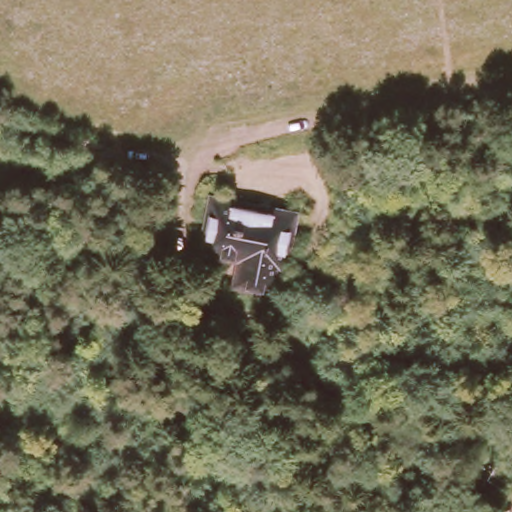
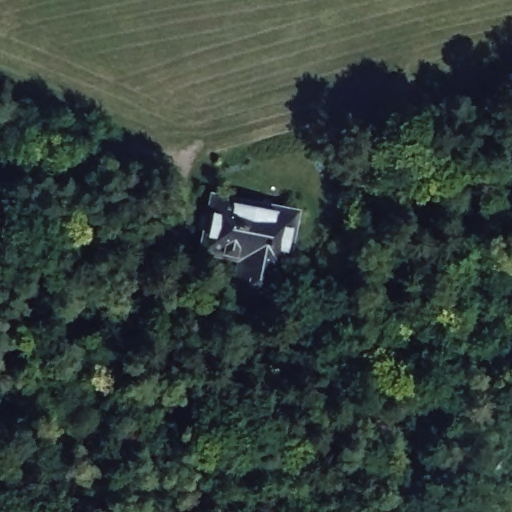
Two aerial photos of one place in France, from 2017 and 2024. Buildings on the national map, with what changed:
unchanged [(234,282),(236,266),(215,265),(216,246),(200,245),(205,201),(221,202),(223,198),(279,204),(278,210),(302,213),(287,287),(234,282)]
unchanged [(61,422),(75,387),(110,392),(103,423),(61,422)]

